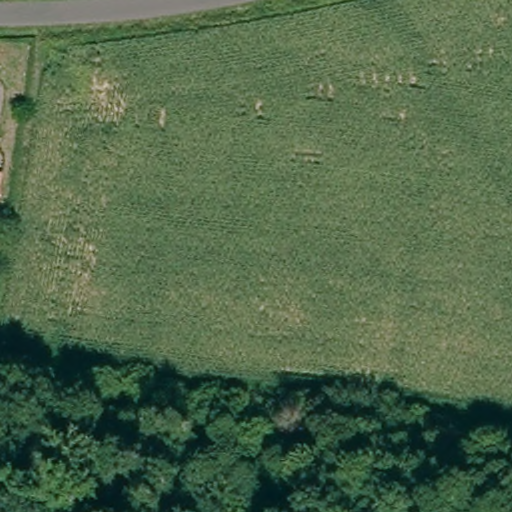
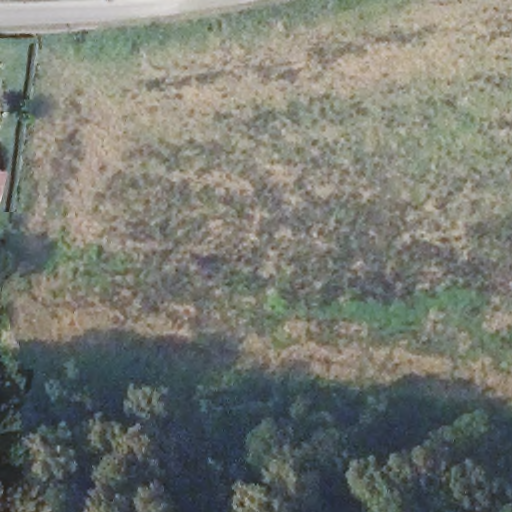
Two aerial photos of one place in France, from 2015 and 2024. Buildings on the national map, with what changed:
unchanged [(0,204),(0,203),(0,170),(4,170),(0,204)]

